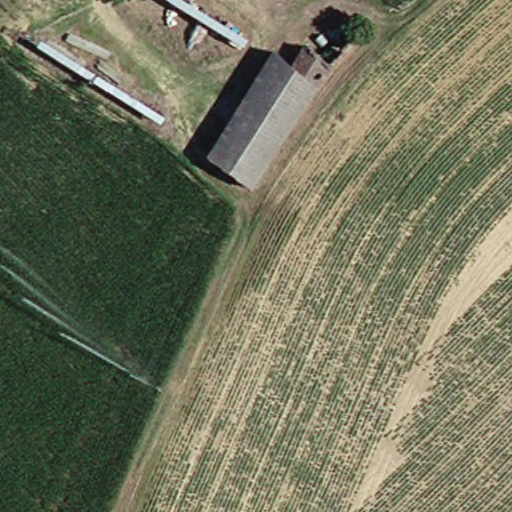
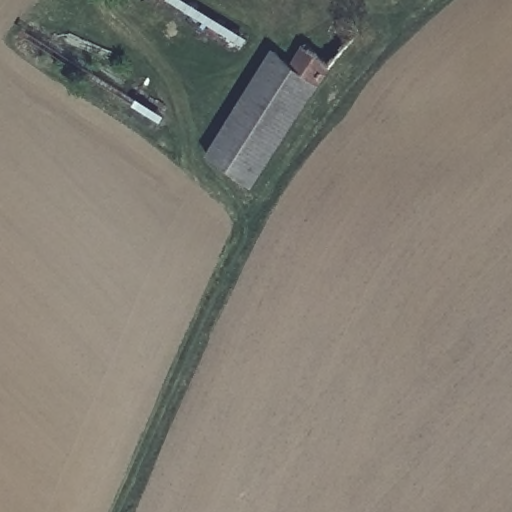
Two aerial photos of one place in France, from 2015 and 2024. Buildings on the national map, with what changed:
unchanged [(285,58),(326,85),(255,185),(214,162),(274,74),(285,58)]

